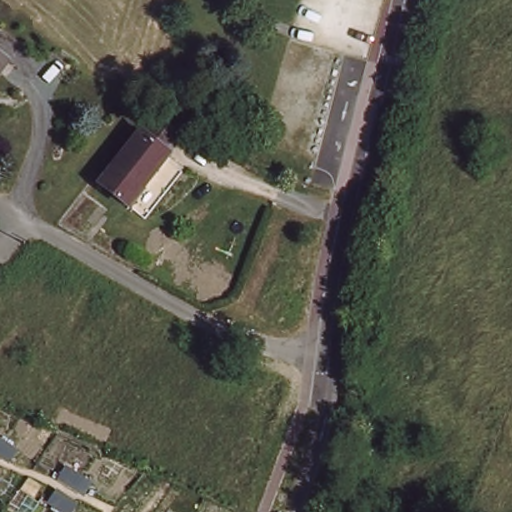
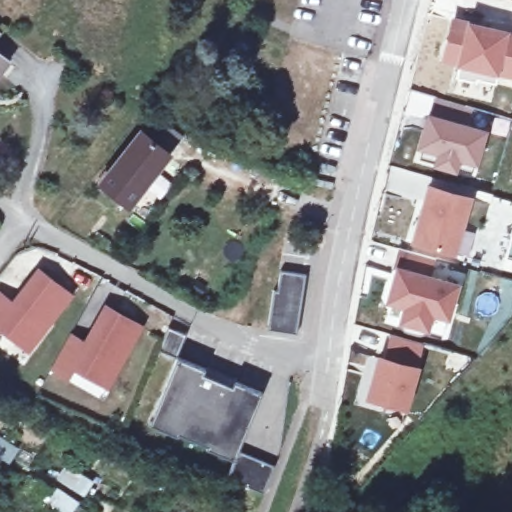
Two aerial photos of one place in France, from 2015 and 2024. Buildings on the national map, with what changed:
new [(448,57),(458,18),(512,32),(512,74),(485,67),(481,81),(460,76),(464,62),(448,57)]
unchanged [(7,63),(0,73),(0,58),(7,63)]
new [(503,71),(500,86),(481,81),(485,67),(503,71)]
new [(424,157),(436,115),(433,114),(439,95),(475,106),(470,124),(487,130),(475,172),(458,167),(442,162),(424,157)]
unchanged [(172,144),(121,217),(93,195),(145,126),(172,144)]
new [(435,184),(475,196),(458,252),(418,240),(435,184)]
new [(432,327),(406,319),(410,304),(392,298),(402,268),(397,266),(403,246),(440,257),(435,276),(462,284),(452,316),(448,331),(432,327)]
new [(2,292),(16,303),(42,269),(73,293),(40,337),(22,340),(1,325),(0,326),(0,294),(2,292)]
new [(295,333),(267,329),(273,290),(278,291),(280,271),(305,276),(295,333)]
new [(73,333),(89,342),(110,305),(145,324),(117,373),(100,377),(77,365),(72,375),(55,366),(73,333)]
new [(154,421),(157,412),(181,356),(162,348),(172,325),(190,333),(182,355),(208,367),(210,364),(240,377),(239,379),(266,391),(242,447),(238,457),(154,421)]
new [(384,357),(421,366),(410,405),(373,395),(384,357)]
new [(227,483),(238,457),(272,470),(262,497),(227,483)]

